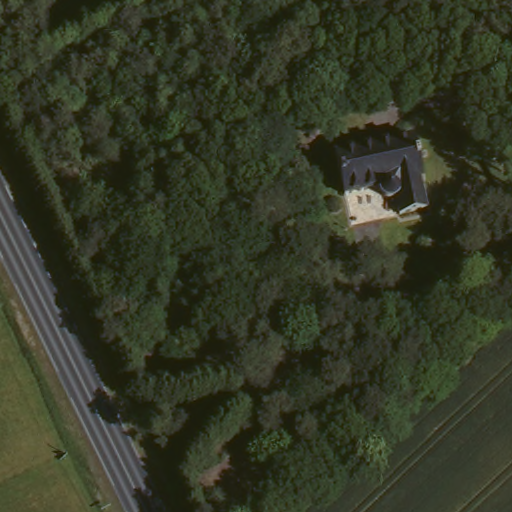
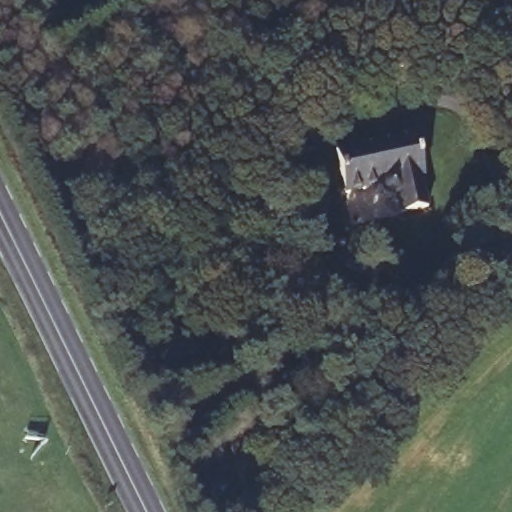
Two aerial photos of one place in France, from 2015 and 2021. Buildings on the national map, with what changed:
unchanged [(404,200),(397,201),(393,201),(388,197),(386,187),(352,194),(342,152),(419,139),(434,209),(407,214),(404,200)]

